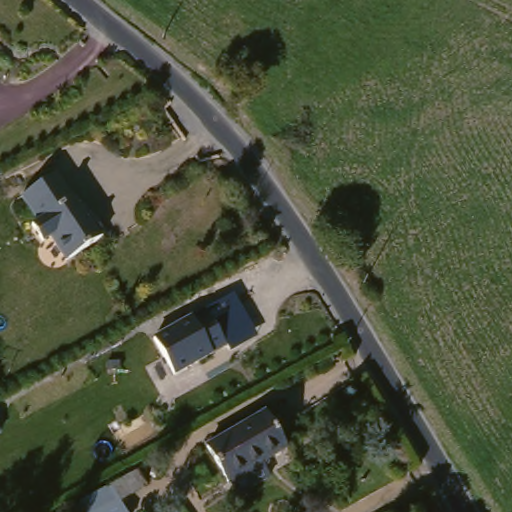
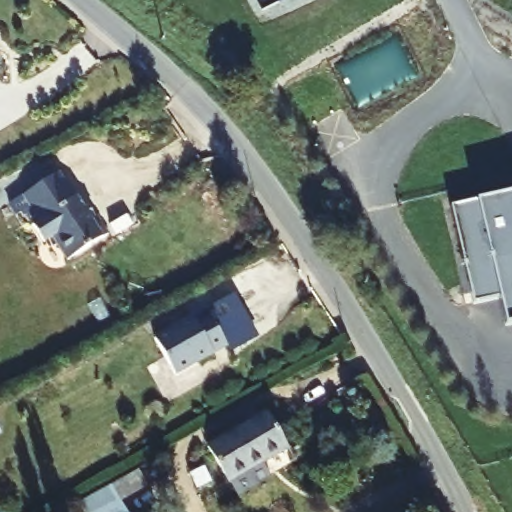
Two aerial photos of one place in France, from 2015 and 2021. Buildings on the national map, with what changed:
unchanged [(79,200),(82,197),(92,220),(96,218),(106,234),(61,258),(51,237),(44,241),(33,222),(40,219),(29,195),(65,175),(79,200)]
new [(512,324),(506,326),(499,297),(474,302),(452,205),(512,191),(512,324)]
unchanged [(229,352),(227,346),(175,376),(154,337),(234,292),(258,338),(229,352)]
unchanged [(282,452),(225,485),(208,450),(262,419),(282,452)]
unchanged [(148,489),(109,512),(82,512),(79,506),(137,473),(148,489)]

